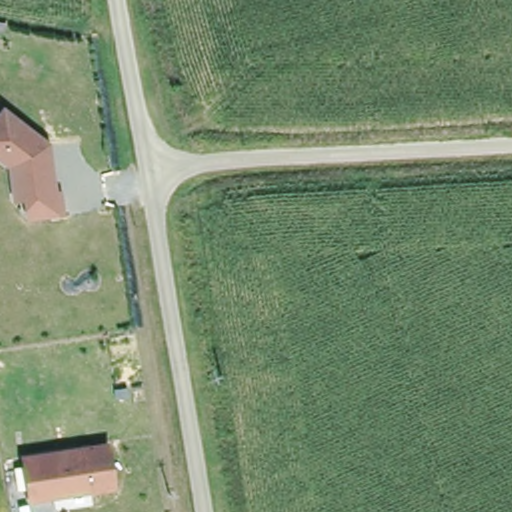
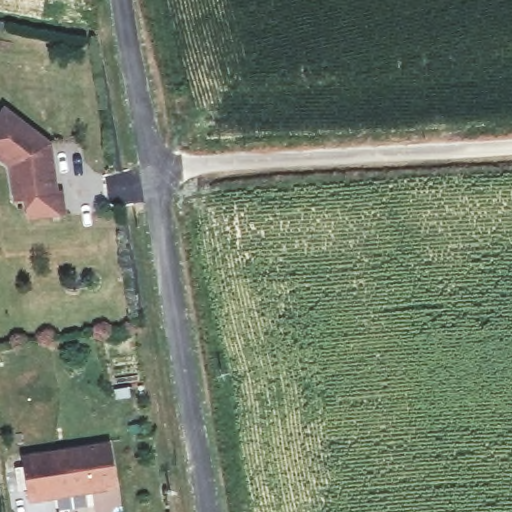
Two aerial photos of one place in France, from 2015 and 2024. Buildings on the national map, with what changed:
unchanged [(14,181),(11,165),(0,156),(0,115),(5,108),(50,144),(55,191),(61,190),(62,213),(27,216),(26,195),(15,196),(14,181)]
unchanged [(110,443),(115,486),(30,499),(25,457),(110,443)]

